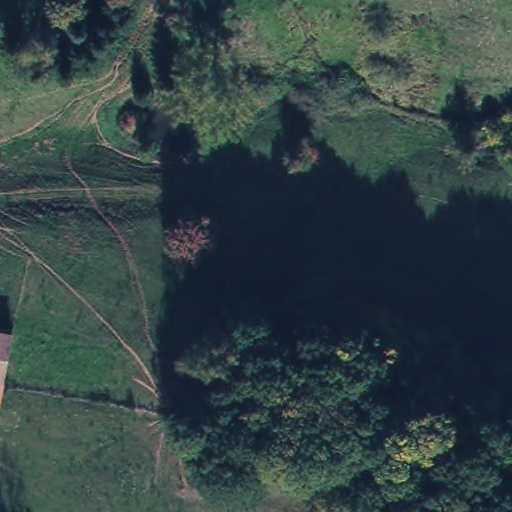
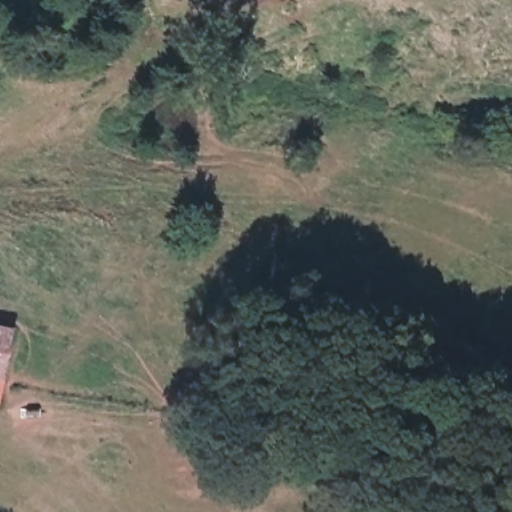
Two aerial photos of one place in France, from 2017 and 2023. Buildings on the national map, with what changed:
unchanged [(0,386),(0,326),(14,329),(0,386)]

